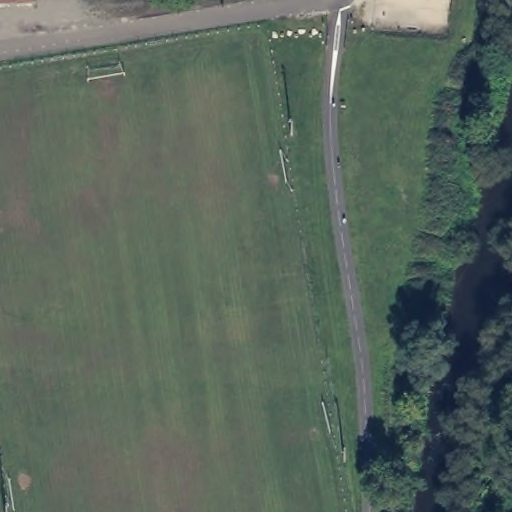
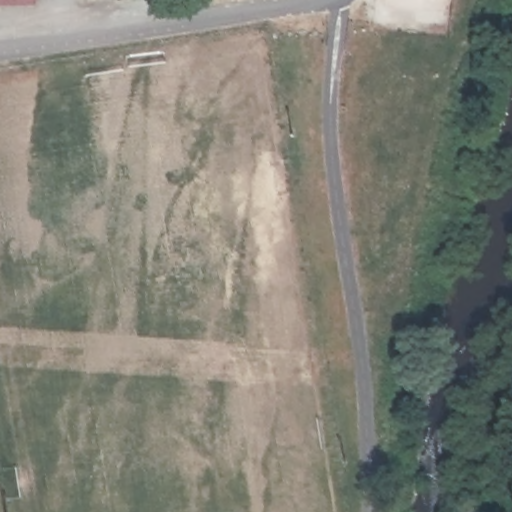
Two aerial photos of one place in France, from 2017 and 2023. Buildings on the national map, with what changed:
unchanged [(28,0),(0,1),(0,0),(28,0)]

